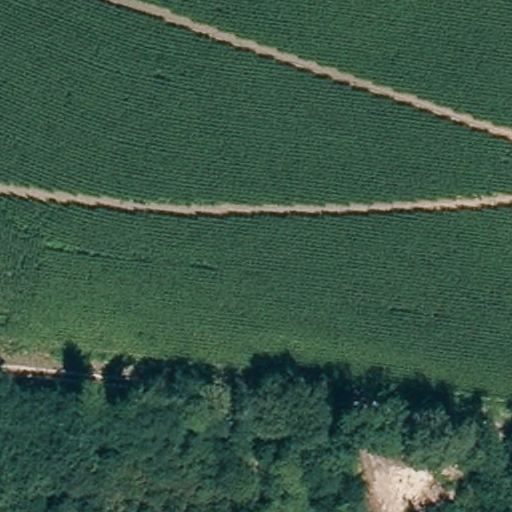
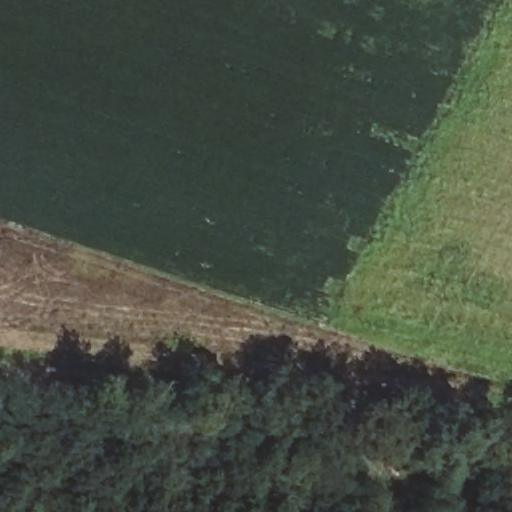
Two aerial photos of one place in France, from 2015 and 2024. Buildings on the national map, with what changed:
[]

